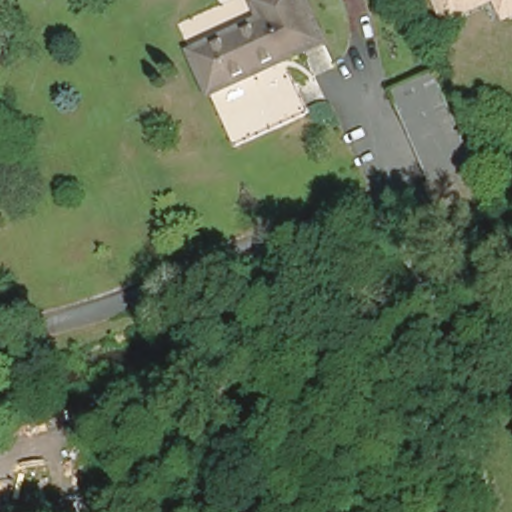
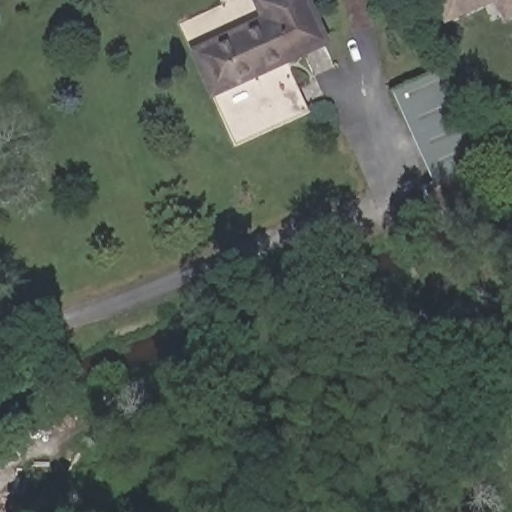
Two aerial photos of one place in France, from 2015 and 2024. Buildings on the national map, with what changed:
unchanged [(195,46),(266,15),(260,0),(313,0),(330,38),(288,56),(311,106),(237,139),(195,46)]
unchanged [(438,0),(488,0),(446,18),(438,0)]
unchanged [(502,8),(499,0),(512,0),(512,13),(506,16),(502,8)]
unchanged [(430,59),(449,103),(407,121),(386,76),(429,57),(430,59)]
unchanged [(449,103),(490,194),(437,217),(417,172),(427,166),(407,121),(449,103)]

